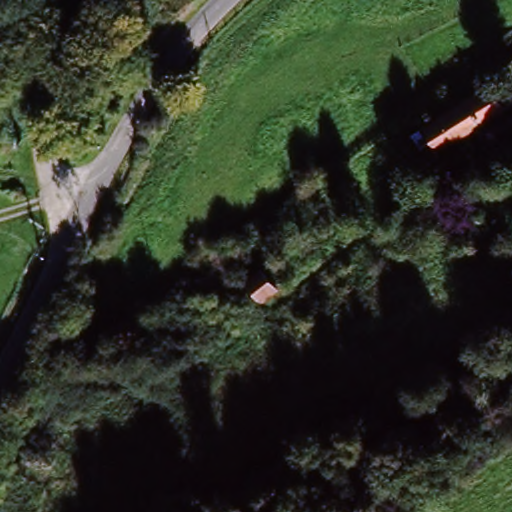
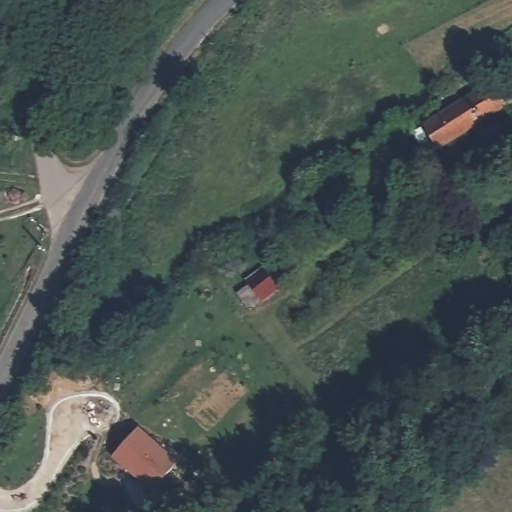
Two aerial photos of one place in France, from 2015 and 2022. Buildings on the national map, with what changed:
unchanged [(421,127),(489,87),(505,114),(437,155),(421,127)]
unchanged [(262,281),(280,295),(267,310),(250,297),(262,281)]
new [(111,455),(137,426),(175,461),(150,490),(111,455)]

